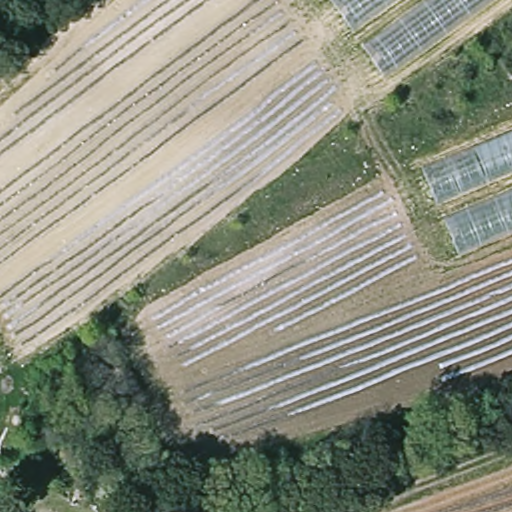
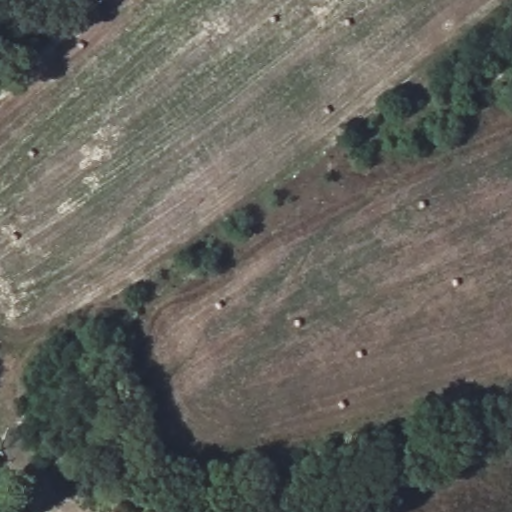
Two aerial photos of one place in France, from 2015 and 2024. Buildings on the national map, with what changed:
new [(330,0),(396,0),(352,31),(330,0)]
new [(362,45),(424,0),(494,0),(384,78),(362,45)]
new [(421,166),(512,128),(512,172),(436,204),(421,166)]
new [(442,217),(512,189),(512,233),(458,255),(442,217)]

